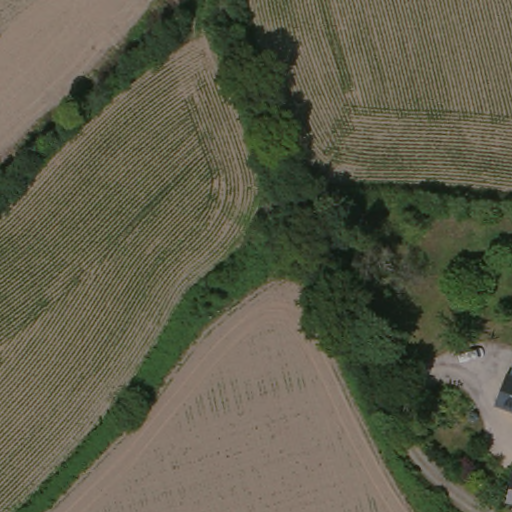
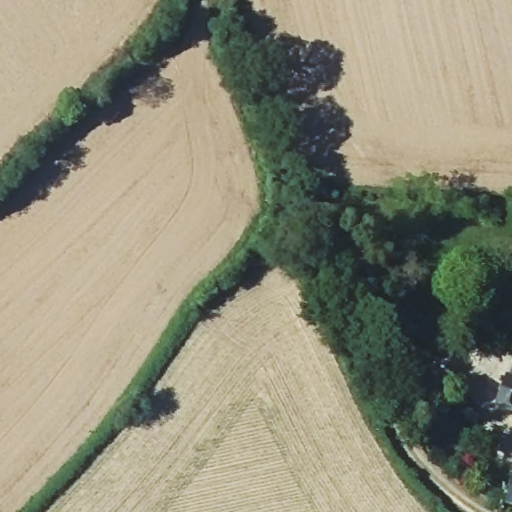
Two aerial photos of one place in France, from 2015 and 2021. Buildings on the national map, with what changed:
unchanged [(489,414),(507,364),(512,366),(512,421),(489,414)]
unchanged [(512,478),(512,506),(500,503),(508,477),(512,478)]

